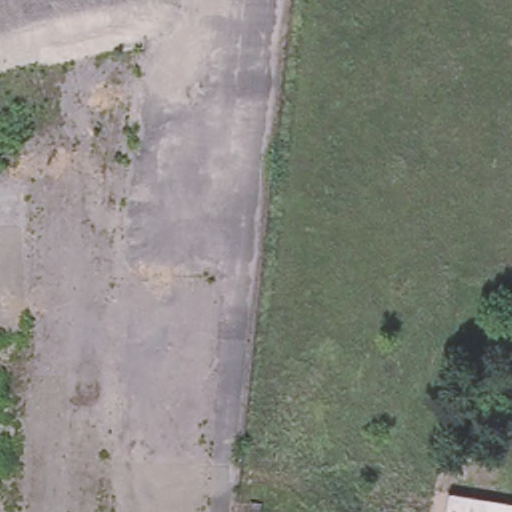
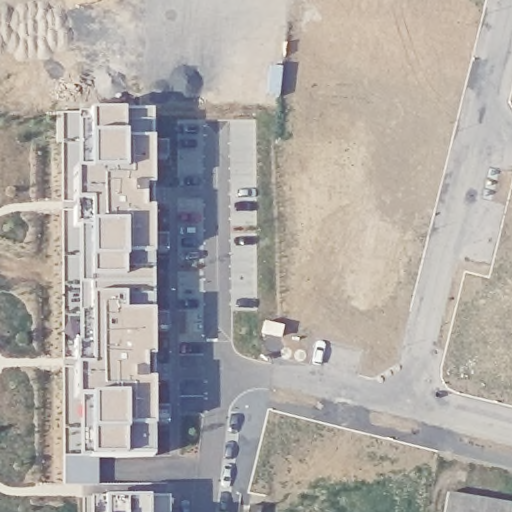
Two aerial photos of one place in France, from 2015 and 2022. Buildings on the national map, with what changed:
new [(80,452),(67,449),(68,369),(87,365),(84,287),(66,284),(68,164),(83,164),(82,108),(160,108),(156,460),(81,461),(80,452)]
unchanged [(450,493),(512,505),(512,512),(446,512),(450,493)]
new [(94,497),(171,500),(171,512),(94,512),(94,497)]

